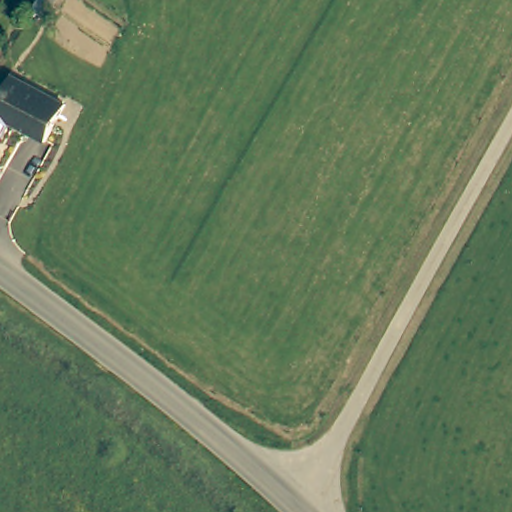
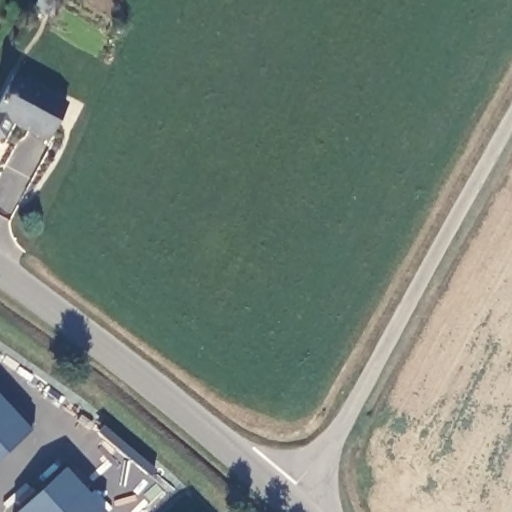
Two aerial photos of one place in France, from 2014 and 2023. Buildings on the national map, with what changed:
unchanged [(49,0),(57,0),(55,3),(49,0)]
unchanged [(67,101),(47,139),(0,114),(0,106),(16,74),(67,101)]
new [(0,458),(0,399),(30,431),(0,458)]
new [(65,469),(104,512),(16,512),(65,469)]

